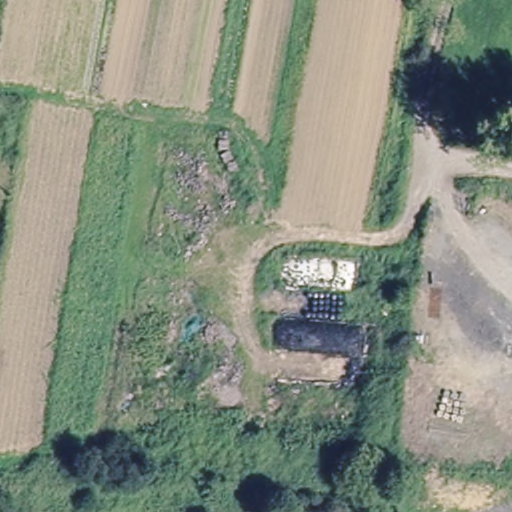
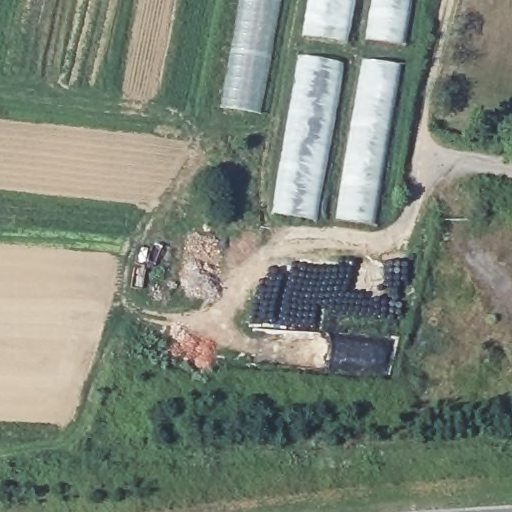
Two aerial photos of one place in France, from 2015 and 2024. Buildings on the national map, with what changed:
new [(282,0),(279,15),(260,115),(218,107),(237,0),(282,0)]
new [(302,37),(309,0),(355,0),(348,45),(302,37)]
new [(413,0),(405,48),(365,41),(372,0),(413,0)]
new [(317,222),(272,214),(297,57),(344,65),(317,222)]
new [(361,61),(402,67),(375,226),(336,221),(361,61)]

